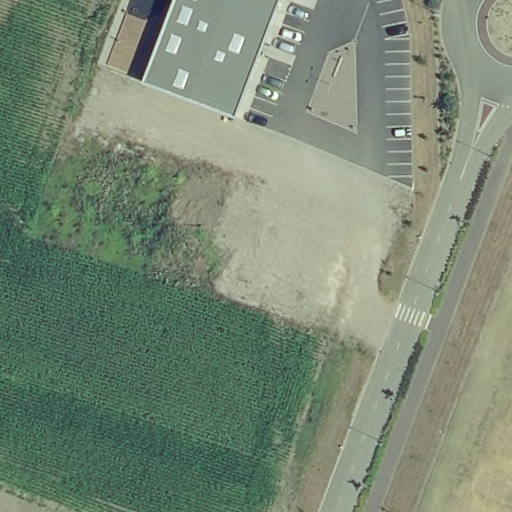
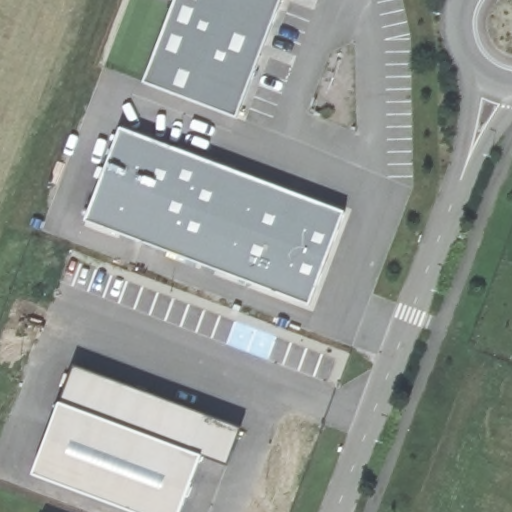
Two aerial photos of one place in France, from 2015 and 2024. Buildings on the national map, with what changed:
unchanged [(237,118),(144,82),(175,0),(282,0),(237,118)]
new [(340,211),(312,301),(83,220),(117,132),(340,211)]
new [(174,512),(140,512),(40,473),(69,363),(207,414),(174,512)]

